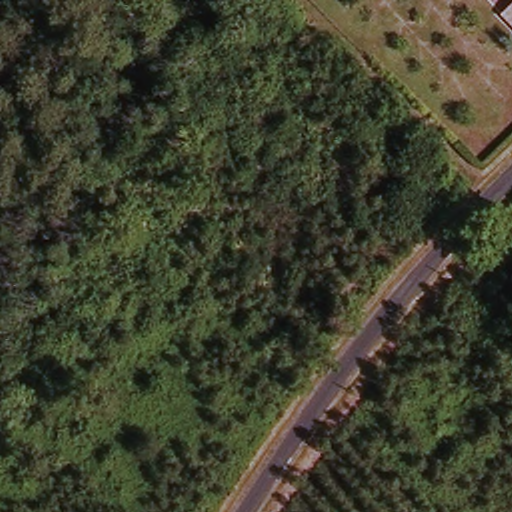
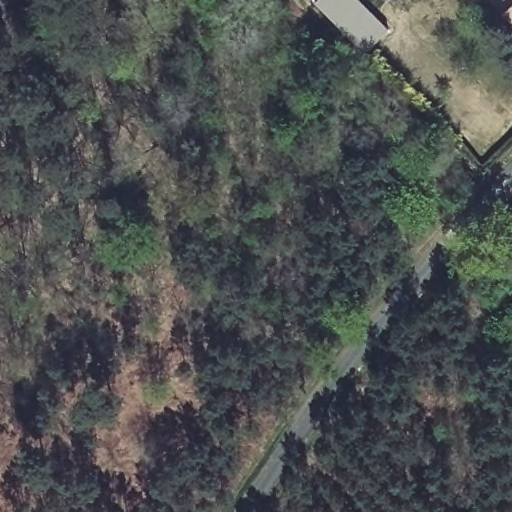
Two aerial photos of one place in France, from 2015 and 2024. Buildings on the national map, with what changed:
new [(363,52),(315,1),(317,0),(356,0),(387,30),(363,52)]
unchanged [(496,0),(512,0),(512,23),(496,0)]

